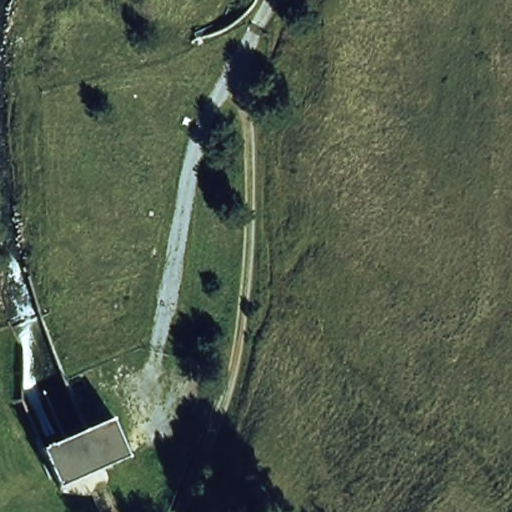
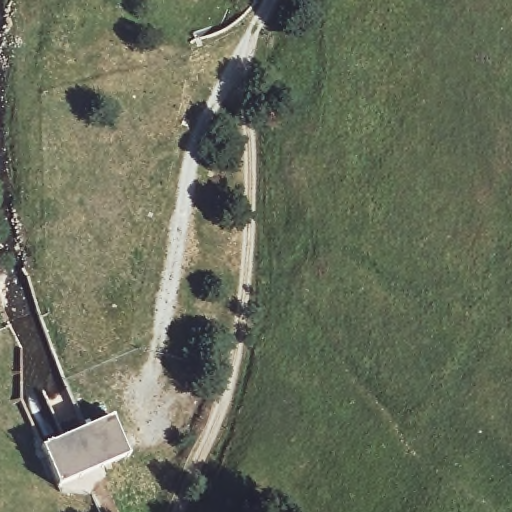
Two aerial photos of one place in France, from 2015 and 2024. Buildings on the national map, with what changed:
unchanged [(83,426),(110,415),(127,453),(57,483),(40,443),(83,426)]

